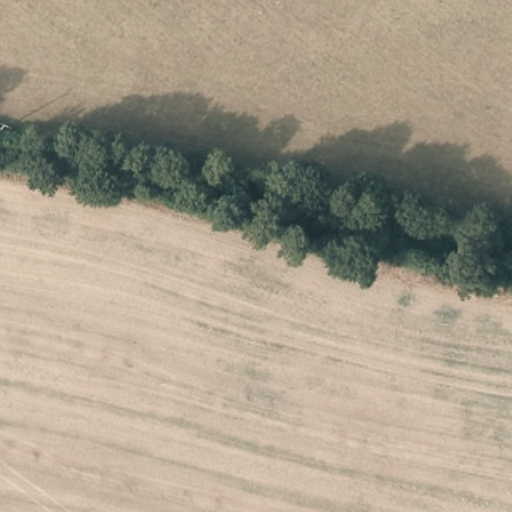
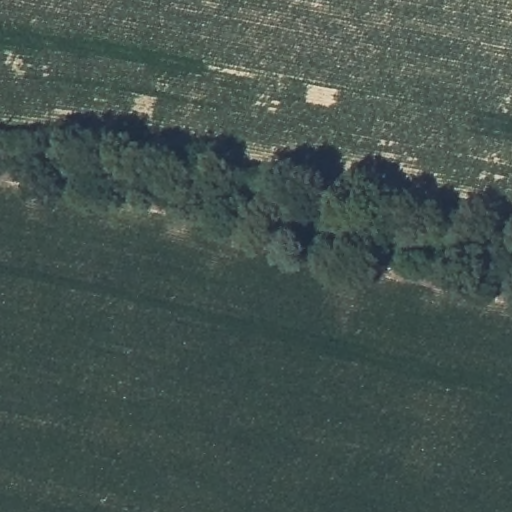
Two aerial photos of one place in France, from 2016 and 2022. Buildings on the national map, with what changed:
[]

